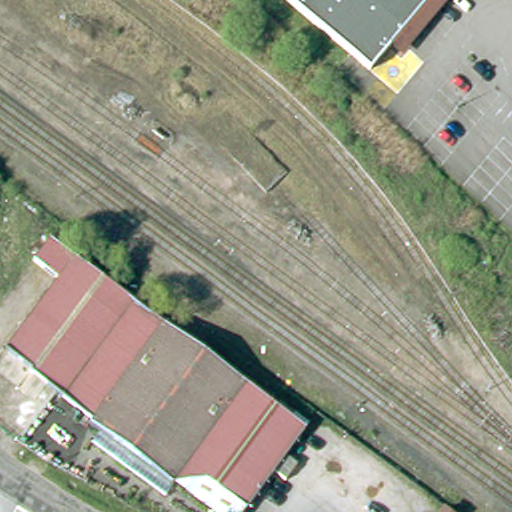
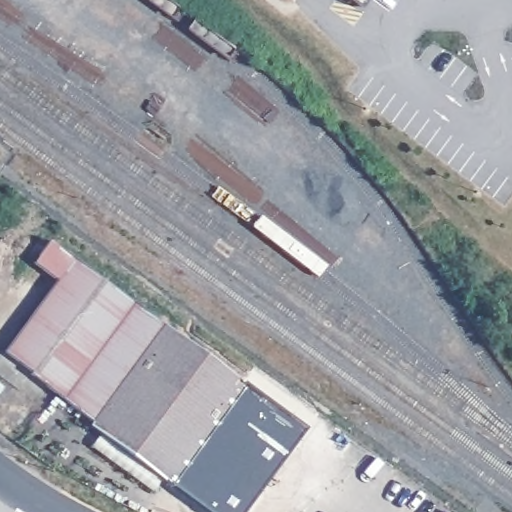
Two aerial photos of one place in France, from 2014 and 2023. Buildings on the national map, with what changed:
demolished [(390,51),(370,75),(282,0),(434,0),(399,40),(390,51)]
new [(360,5),(353,0),(364,0),(360,5)]
unchanged [(36,262),(52,242),(110,285),(41,378),(39,378),(36,375),(9,354),(62,281),(36,262)]
unchanged [(176,488),(142,463),(136,471),(90,443),(101,427),(39,378),(41,378),(110,285),(309,433),(252,512),(215,512),(182,488),(176,488)]

